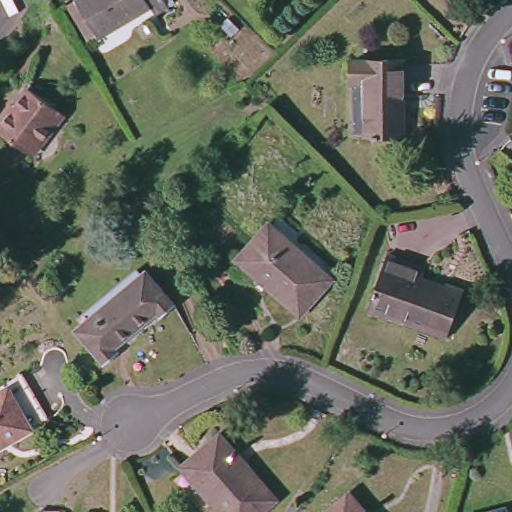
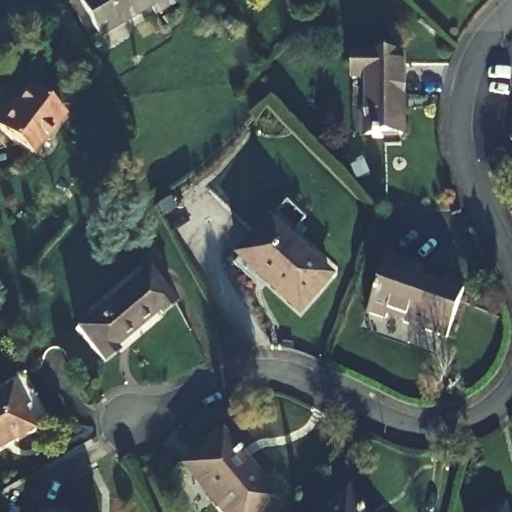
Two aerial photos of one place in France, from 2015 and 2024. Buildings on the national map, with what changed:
unchanged [(146,17),(140,7),(87,39),(65,2),(68,0),(154,0),(159,9),(146,17)]
unchanged [(347,65),(401,60),(405,135),(367,137),(362,84),(348,84),(347,65)]
unchanged [(0,119),(29,87),(60,115),(25,154),(0,131),(0,119)]
unchanged [(262,225),(330,272),(302,311),(235,263),(262,225)]
unchanged [(444,342),(365,313),(383,257),(403,263),(402,271),(460,291),(444,342)]
unchanged [(169,301),(156,313),(152,308),(112,346),(116,350),(102,362),(72,330),(138,267),(169,301)]
unchanged [(0,450),(0,391),(14,383),(38,428),(0,450)]
unchanged [(275,492),(254,512),(228,512),(182,464),(215,430),(275,492)]
unchanged [(362,512),(329,512),(348,497),(362,512)]
unchanged [(477,512),(477,509),(512,510),(512,512),(477,512)]
unchanged [(57,510),(58,512),(34,512),(33,512),(57,510)]

